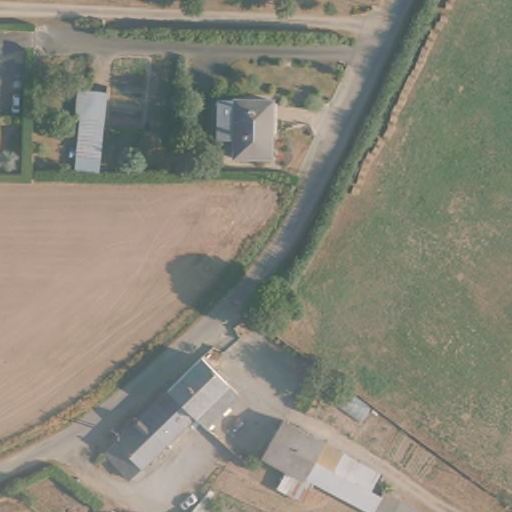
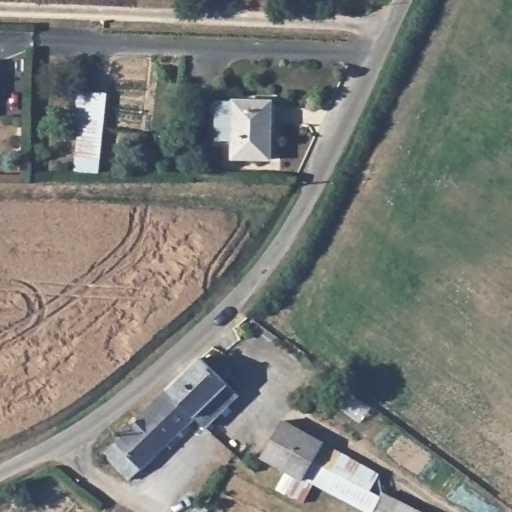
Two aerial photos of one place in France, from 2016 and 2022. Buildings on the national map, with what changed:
unchanged [(98,170),(78,170),(82,126),(71,125),(73,98),(109,101),(98,170)]
unchanged [(215,103),(271,103),(271,113),(271,161),(235,162),(235,144),(215,144),(215,111),(215,103)]
unchanged [(238,394),(205,427),(193,416),(166,389),(185,368),(199,355),(238,394)]
unchanged [(193,416),(165,444),(138,417),(166,389),(193,416)]
unchanged [(103,454),(138,417),(165,444),(128,481),(113,464),(103,454)]
unchanged [(300,479),(261,458),(283,420),(378,473),(368,489),(379,496),(382,491),(422,512),(367,512),(302,476),(300,479)]

